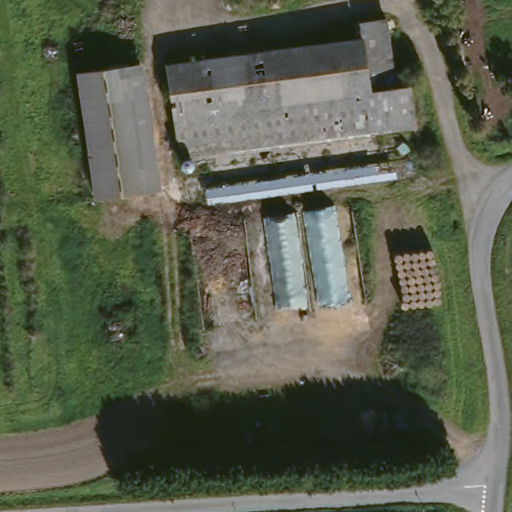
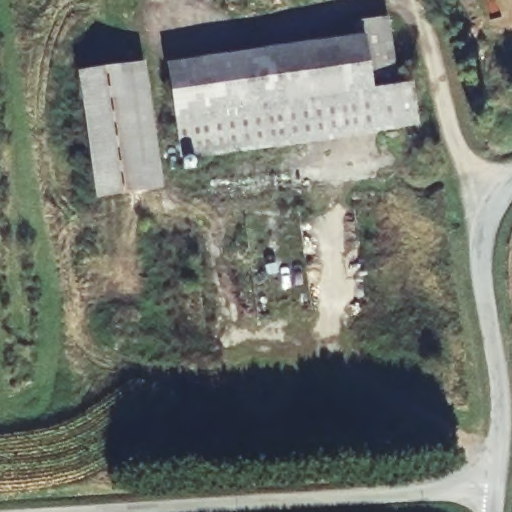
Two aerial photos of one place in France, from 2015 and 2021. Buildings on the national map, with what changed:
unchanged [(392,27),(402,63),(411,63),(418,124),(205,152),(184,157),(164,55),(392,27)]
unchanged [(143,58),(162,187),(89,197),(71,68),(143,58)]

